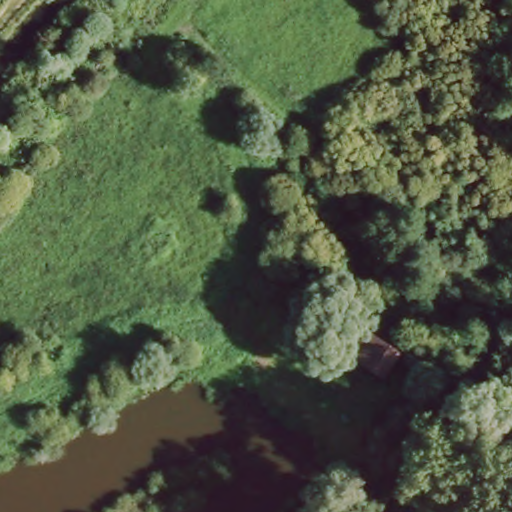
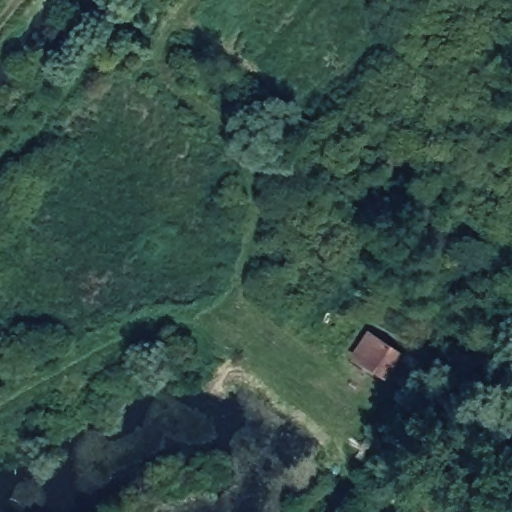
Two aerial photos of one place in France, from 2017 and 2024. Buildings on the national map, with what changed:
unchanged [(365,333),(400,349),(383,376),(350,359),(365,333)]

